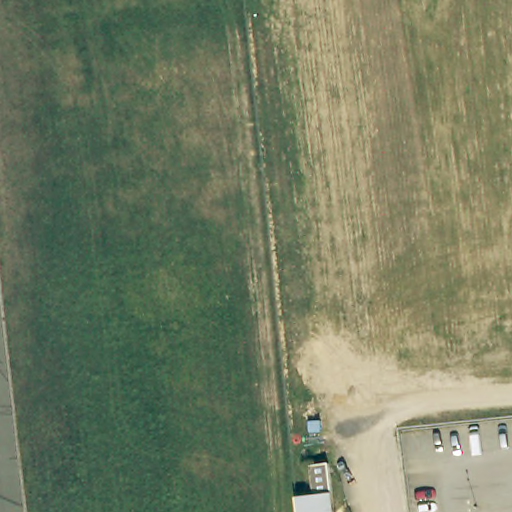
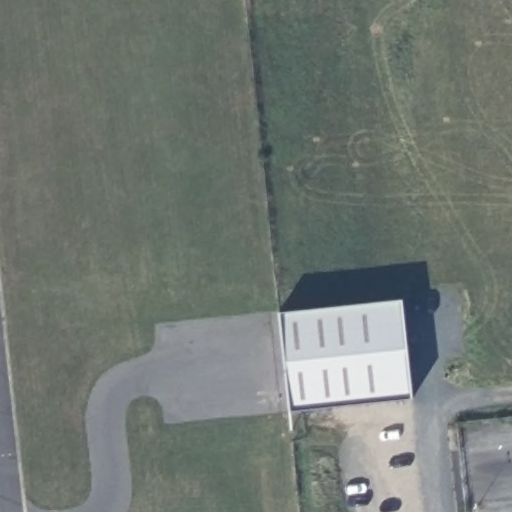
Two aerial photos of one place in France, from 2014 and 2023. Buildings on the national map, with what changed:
new [(401,299),(412,397),(291,410),(279,312),(401,299)]
demolished [(329,496),(327,471),(344,469),(349,512),(314,512),(313,501),(329,496)]

